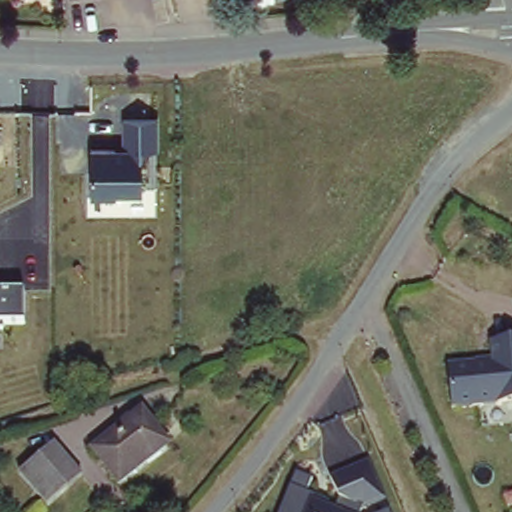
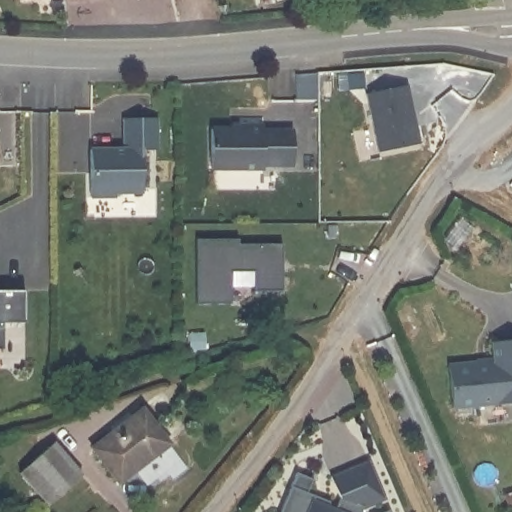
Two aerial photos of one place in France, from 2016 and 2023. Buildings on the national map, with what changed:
new [(400,81),(411,140),(370,149),(358,90),(400,81)]
unchanged [(90,150),(121,150),(120,117),(158,117),(158,151),(145,151),(145,163),(140,162),(140,194),(116,195),(116,200),(90,200),(90,150)]
new [(242,132),(242,128),(260,127),(260,132),(290,131),(291,166),(261,166),(261,170),(210,172),(208,133),(242,132)]
new [(237,240),(237,244),(280,244),(280,291),(254,291),(254,271),(230,272),(230,304),(195,305),(195,240),(237,240)]
unchanged [(4,322),(1,351),(0,351),(0,291),(23,291),(22,322),(4,322)]
unchanged [(462,405),(458,362),(500,358),(497,340),(512,338),(512,400),(462,405)]
unchanged [(142,409),(167,443),(117,480),(92,445),(142,409)]
unchanged [(59,441),(92,481),(74,498),(65,488),(49,501),(41,493),(22,469),(59,441)]
unchanged [(312,479),(308,493),(337,506),(340,500),(330,478),(369,462),(385,502),(362,512),(279,512),(295,472),(312,479)]

